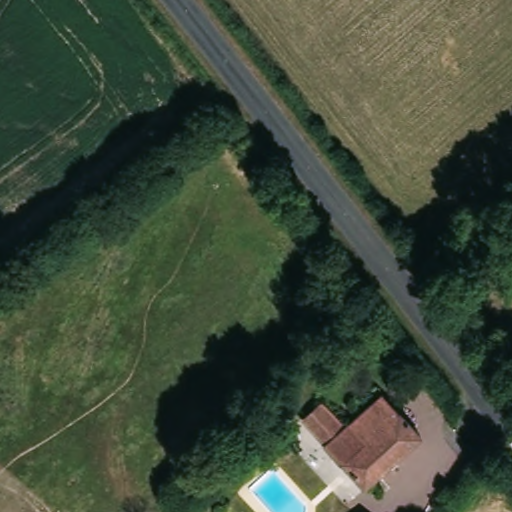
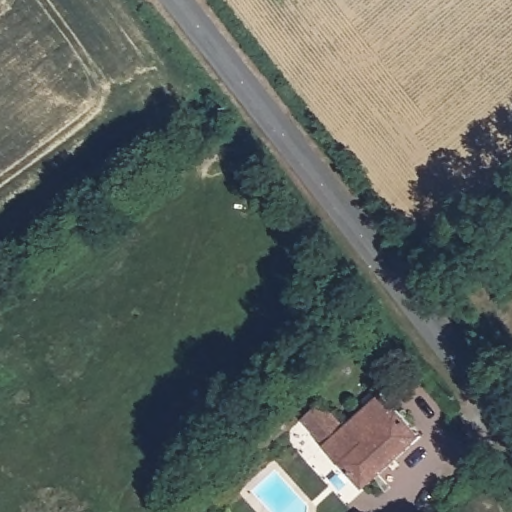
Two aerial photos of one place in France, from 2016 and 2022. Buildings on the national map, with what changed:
unchanged [(317,445),(296,420),(314,401),(337,427),(375,393),(414,437),(357,488),(317,445)]

